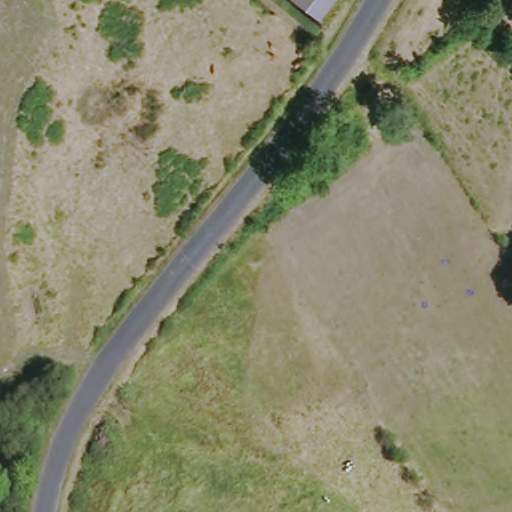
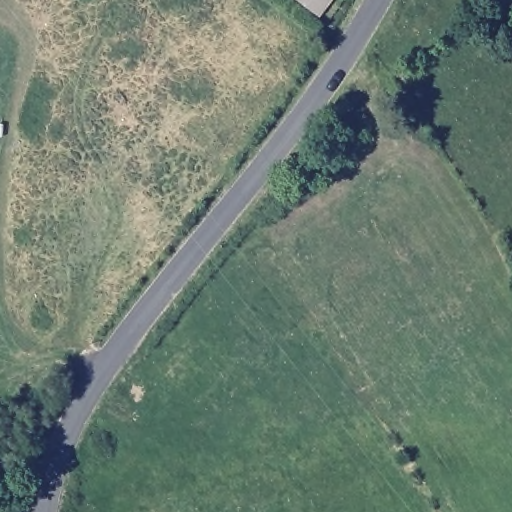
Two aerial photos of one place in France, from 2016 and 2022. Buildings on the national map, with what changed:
unchanged [(318,19),(295,0),(333,0),(318,19)]

